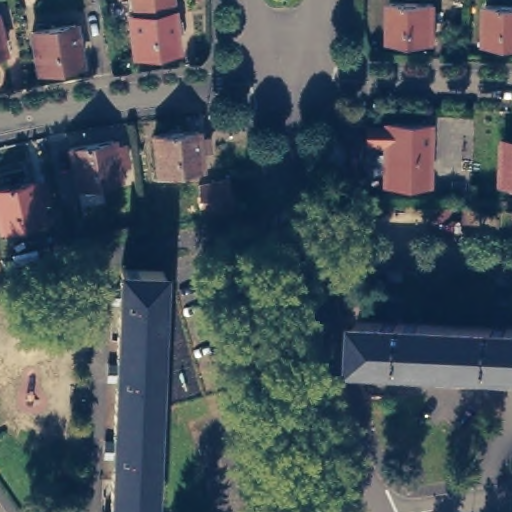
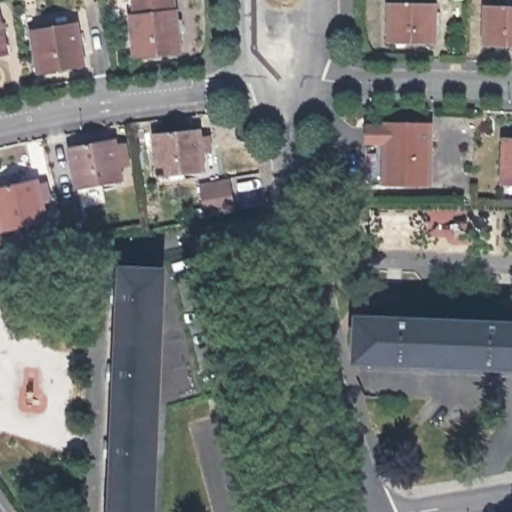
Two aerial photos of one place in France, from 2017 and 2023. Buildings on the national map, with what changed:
unchanged [(430,3),(430,44),(390,46),(388,5),(430,3)]
unchanged [(487,5),(512,6),(512,47),(486,46),(487,5)]
unchanged [(170,6),(175,46),(132,51),(127,11),(170,6)]
unchanged [(0,51),(0,9),(2,9),(12,49),(0,51)]
unchanged [(40,72),(33,32),(54,28),(52,17),(75,13),(77,25),(84,65),(40,72)]
unchanged [(430,165),(430,178),(411,178),(410,185),(385,184),(385,164),(387,123),(430,124),(430,165)]
unchanged [(200,130),(204,171),(160,176),(155,135),(200,130)]
unchanged [(500,136),(512,137),(512,177),(499,177),(500,136)]
unchanged [(74,189),(67,148),(110,141),(111,149),(121,146),(124,164),(114,166),(117,181),(74,189)]
unchanged [(46,216),(3,226),(0,212),(0,185),(37,176),(46,216)]
unchanged [(206,214),(200,185),(235,179),(240,208),(206,214)]
unchanged [(122,268),(165,270),(155,512),(112,512),(122,268)]
unchanged [(512,320),(512,361),(357,355),(359,314),(512,320)]

